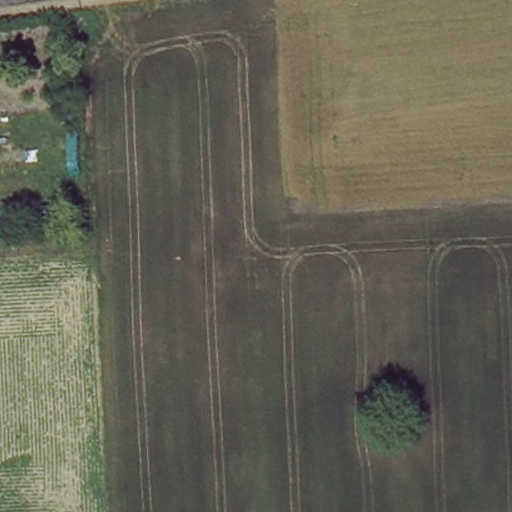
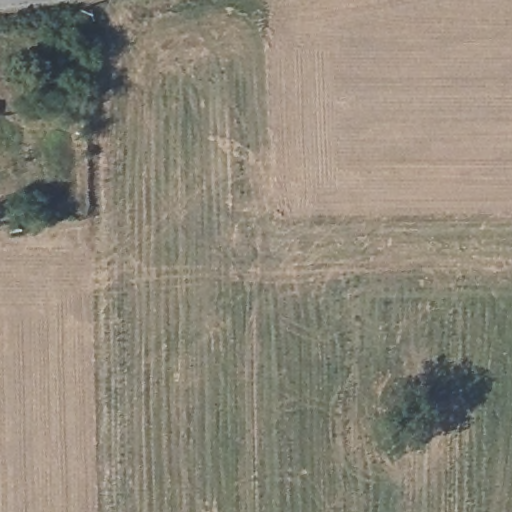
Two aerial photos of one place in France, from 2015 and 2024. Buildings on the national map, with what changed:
[]

